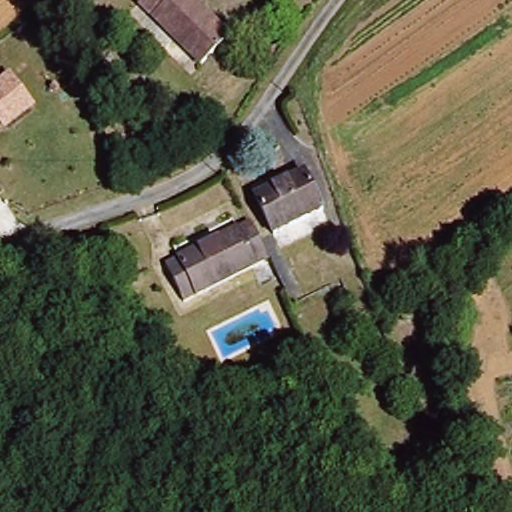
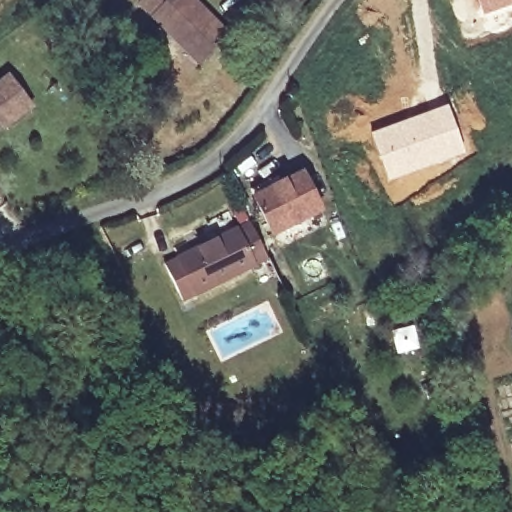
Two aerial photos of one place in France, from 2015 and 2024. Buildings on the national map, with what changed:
unchanged [(145,0),(198,0),(235,38),(203,70),(140,5),(145,0)]
new [(483,15),(478,0),(512,0),(512,5),(483,15)]
unchanged [(2,134),(0,131),(0,79),(11,72),(36,111),(2,134)]
new [(447,104),(465,152),(388,180),(370,132),(447,104)]
unchanged [(308,177),(325,211),(272,237),(256,203),(308,177)]
unchanged [(201,250),(255,223),(271,260),(184,305),(165,269),(201,250)]

